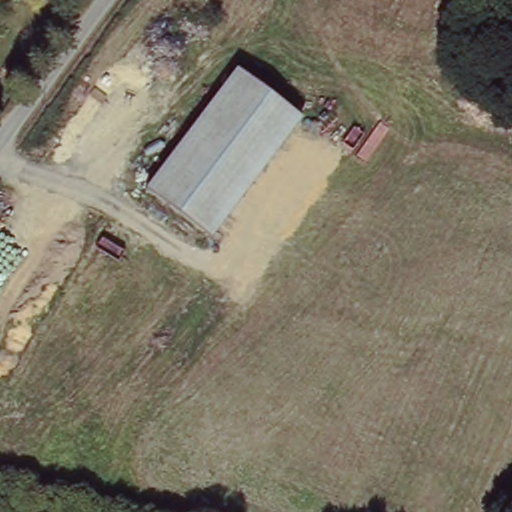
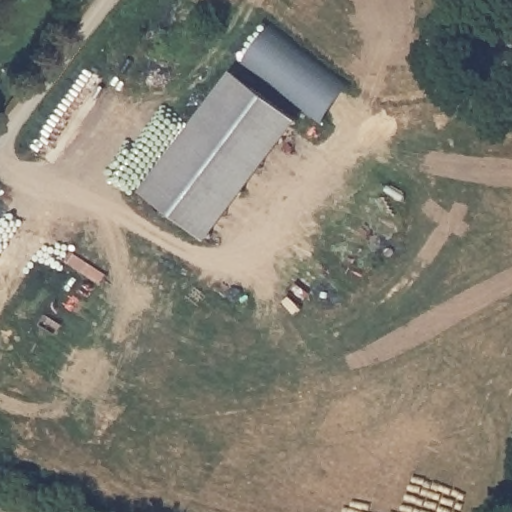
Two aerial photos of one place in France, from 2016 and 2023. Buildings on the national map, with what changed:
new [(352,85),(319,126),(242,65),(272,26),(352,85)]
unchanged [(236,71),(301,122),(211,239),(146,189),(236,71)]

